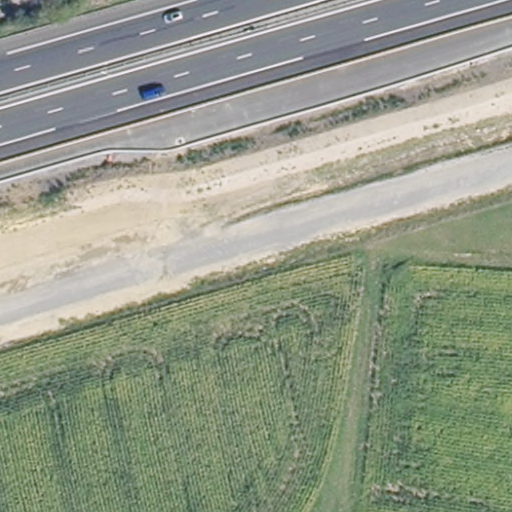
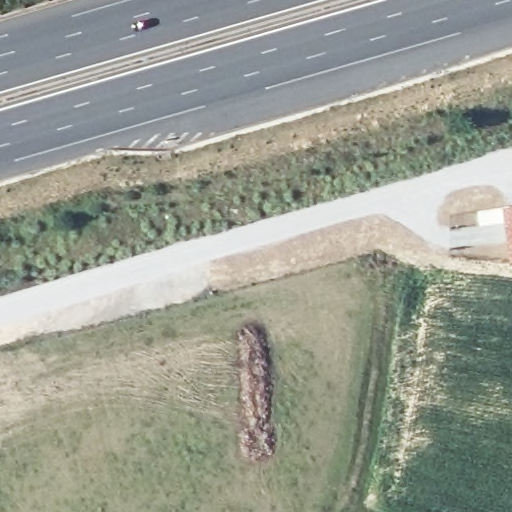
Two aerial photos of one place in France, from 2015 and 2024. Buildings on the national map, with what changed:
new [(503,203),(512,202),(512,256),(503,203)]

